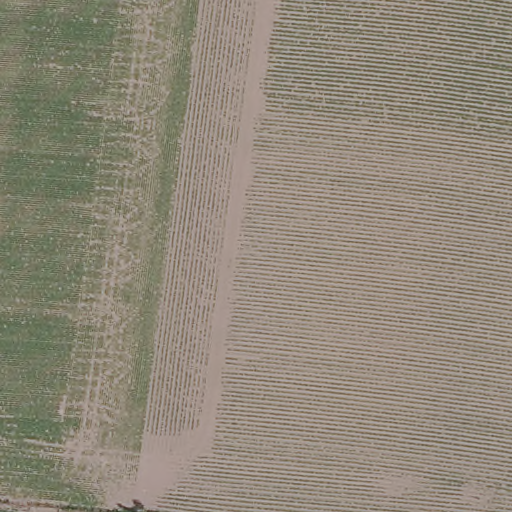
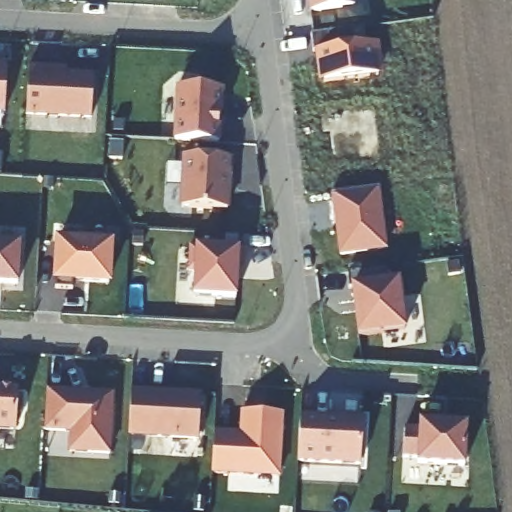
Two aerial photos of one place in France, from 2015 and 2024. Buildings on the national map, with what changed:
new [(358,7),(310,13),(308,0),(357,0),(358,7)]
new [(365,45),(377,44),(380,76),(317,80),(311,37),(362,30),(365,45)]
new [(4,115),(0,115),(0,68),(5,68),(4,115)]
new [(64,75),(92,76),(91,121),(26,118),(29,68),(64,70),(64,75)]
new [(220,145),(174,141),(177,87),(225,90),(220,145)]
new [(229,212),(180,209),(182,159),(233,161),(229,212)]
new [(386,254),(337,261),(330,197),(379,193),(386,254)]
new [(111,288),(52,285),(55,240),(114,243),(111,288)]
new [(18,288),(0,287),(0,242),(20,244),(18,288)]
new [(237,301),(192,298),(195,277),(185,276),(187,247),(196,247),(240,252),(237,301)]
new [(407,334),(358,341),(350,287),(401,282),(407,334)]
new [(13,436),(0,434),(0,388),(17,389),(13,436)]
new [(110,459),(67,456),(69,436),(45,434),(46,391),(114,396),(110,459)]
new [(197,443),(129,440),(131,391),(200,396),(197,443)]
new [(279,481),(210,477),(214,433),(237,435),(239,415),(284,417),(279,481)]
new [(360,470),(299,466),(300,415),(363,419),(360,470)]
new [(465,470),(403,465),(405,432),(419,433),(420,421),(469,425),(465,470)]

